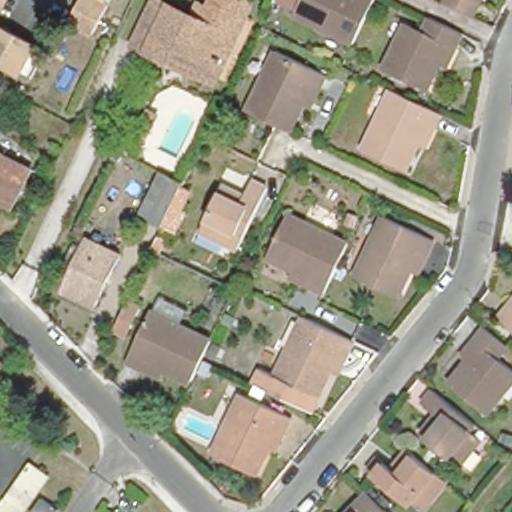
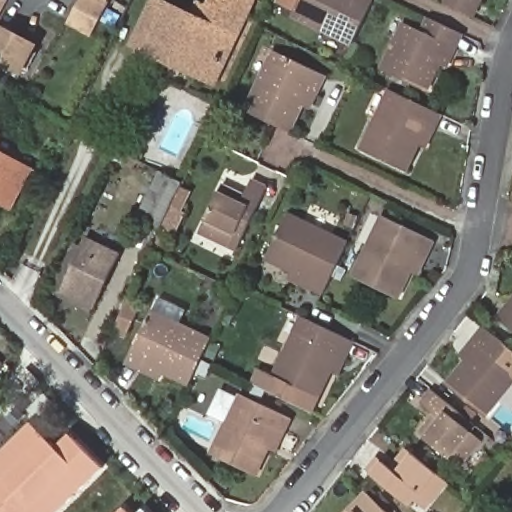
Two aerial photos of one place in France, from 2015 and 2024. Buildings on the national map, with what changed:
unchanged [(76,0),(106,0),(100,13),(92,28),(68,16),(76,0)]
unchanged [(182,74),(163,65),(186,19),(199,25),(205,14),(213,18),(222,0),(245,0),(256,5),(218,84),(215,90),(182,74)]
unchanged [(295,0),(370,0),(350,44),(288,15),(295,0)]
unchanged [(475,22),(445,7),(449,0),(486,0),(475,22)]
unchanged [(163,65),(138,53),(161,7),(186,19),(163,65)]
unchanged [(0,22),(33,39),(20,65),(0,55),(0,22)]
unchanged [(445,69),(432,95),(388,74),(411,27),(428,35),(434,22),(469,39),(463,53),(453,72),(445,69)]
unchanged [(308,111),(295,137),(284,132),(252,117),(281,56),(332,79),(325,95),(316,116),(308,111)]
unchanged [(417,150),(405,174),(363,155),(390,95),(441,118),(433,134),(423,154),(417,150)]
unchanged [(0,144),(0,141),(1,141),(0,144)]
unchanged [(16,210),(0,202),(0,155),(34,175),(16,210)]
unchanged [(137,215),(157,172),(180,184),(159,227),(137,215)]
unchanged [(226,192),(247,202),(254,187),(271,195),(242,257),(203,239),(226,192)]
unchanged [(298,271),(273,259),(294,214),(354,242),(330,295),(315,288),(294,279),(298,271)]
unchanged [(414,277),(402,303),(360,284),(388,222),(439,245),(432,260),(422,281),(414,277)]
unchanged [(84,244),(109,256),(100,274),(106,278),(89,310),(58,295),(84,244)]
unchanged [(122,303),(135,310),(122,336),(109,330),(122,303)]
unchanged [(148,371),(132,363),(156,313),(217,342),(209,359),(197,386),(171,373),(168,381),(148,371)]
unchanged [(507,323),(512,317),(512,327),(507,323)]
unchanged [(359,341),(346,373),(339,370),(320,415),(246,383),(256,368),(276,379),(303,318),(359,341)]
unchanged [(451,391),(468,370),(462,365),(475,348),(487,334),(512,355),(512,395),(489,423),(451,391)]
unchanged [(0,370),(0,361),(4,365),(0,370)]
unchanged [(482,453),(467,472),(427,441),(441,423),(428,412),(440,398),(481,430),(476,436),(487,447),(482,453)]
unchanged [(274,452),(261,479),(216,457),(246,399),(296,423),(289,438),(281,456),(274,452)]
new [(70,432),(102,462),(52,512),(0,512),(0,451),(32,421),(57,444),(70,432)]
unchanged [(512,436),(512,446),(499,442),(502,433),(512,436)]
unchanged [(422,502),(417,508),(377,476),(388,463),(399,472),(416,452),(454,483),(437,503),(432,510),(422,502)]
demolished [(60,511),(60,512),(36,512),(45,499),(60,511)]
unchanged [(378,503),(387,512),(370,512),(371,511),(378,503)]
new [(129,512),(121,512),(125,508),(129,512)]
new [(147,512),(141,512),(144,509),(147,512)]

